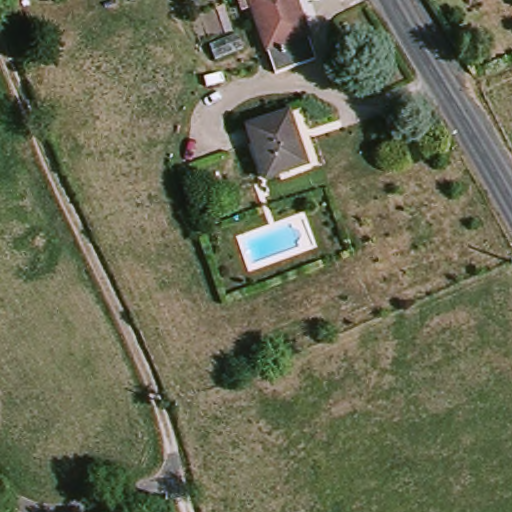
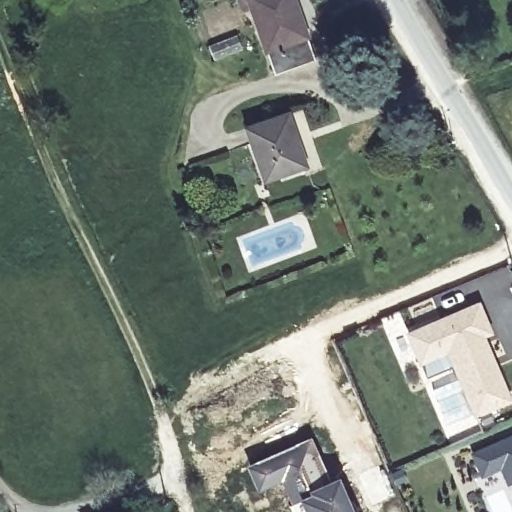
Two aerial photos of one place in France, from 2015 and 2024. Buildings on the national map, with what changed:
unchanged [(248,0),(294,0),(317,61),(276,75),(248,0)]
unchanged [(288,115),(307,166),(265,181),(247,130),(288,115)]
new [(493,332),(486,335),(498,365),(512,398),(512,399),(477,414),(450,350),(422,362),(410,332),(481,302),(493,332)]
new [(312,434),(331,477),(300,493),(301,496),(298,498),(289,505),(280,482),(257,492),(245,464),(312,434)]
new [(512,482),(503,463),(485,472),(475,451),(512,434),(512,481),(512,482)]
new [(298,498),(301,496),(300,493),(331,477),(339,474),(356,512),(293,512),(289,505),(298,498)]

